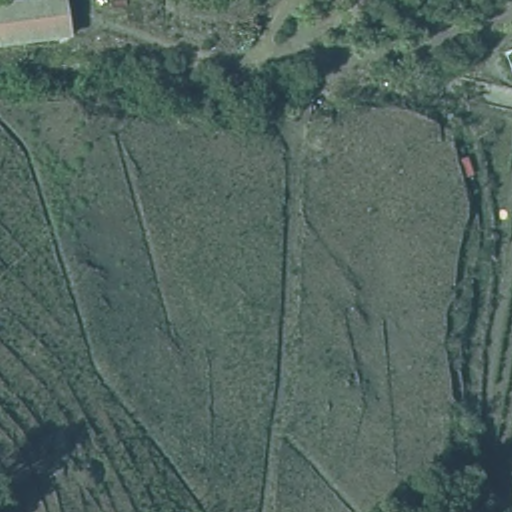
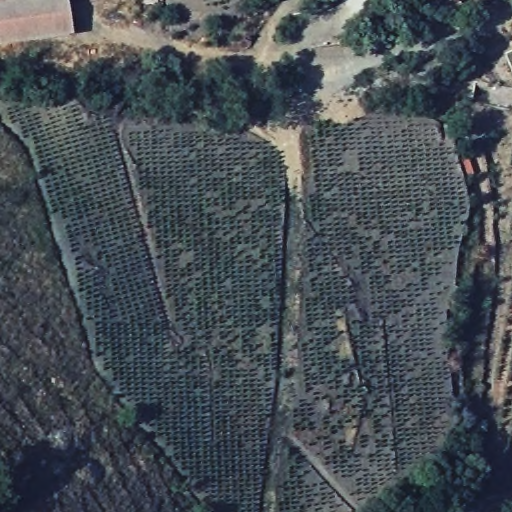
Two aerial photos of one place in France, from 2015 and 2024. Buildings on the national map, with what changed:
unchanged [(0,45),(0,2),(25,0),(69,0),(71,40),(0,45)]

